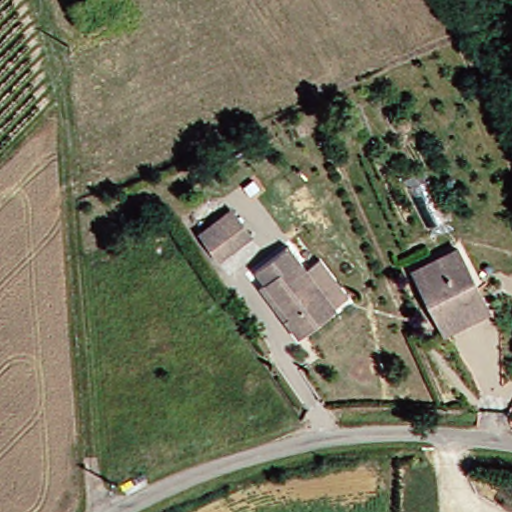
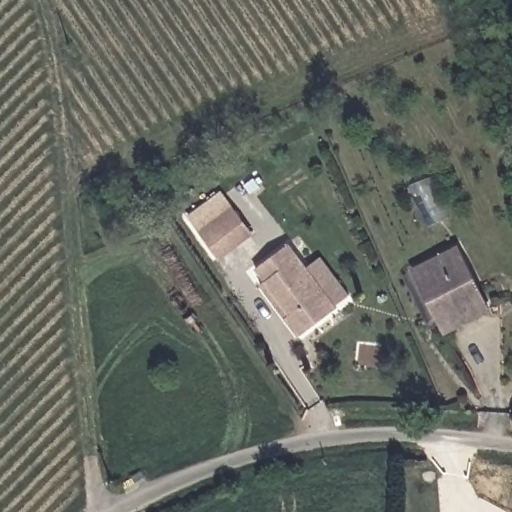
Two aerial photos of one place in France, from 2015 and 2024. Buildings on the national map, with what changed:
unchanged [(208,251),(191,226),(223,205),(239,230),(208,251)]
unchanged [(251,282),(241,269),(274,244),(323,308),(285,337),(271,318),(276,315),(251,282)]
unchanged [(447,246),(472,295),(478,308),(434,331),(402,268),(447,246)]

